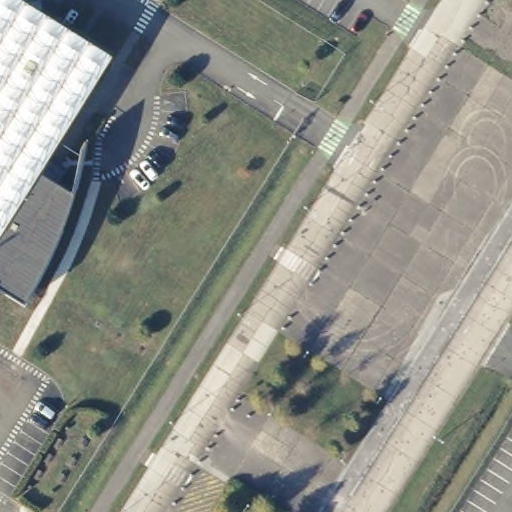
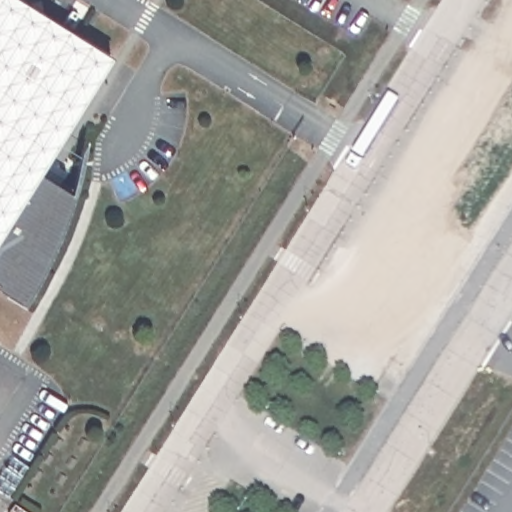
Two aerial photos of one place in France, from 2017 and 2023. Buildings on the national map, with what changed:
unchanged [(51,157),(70,170),(63,182),(77,190),(70,212),(50,258),(29,297),(0,279),(0,0),(28,0),(115,54),(51,157)]

